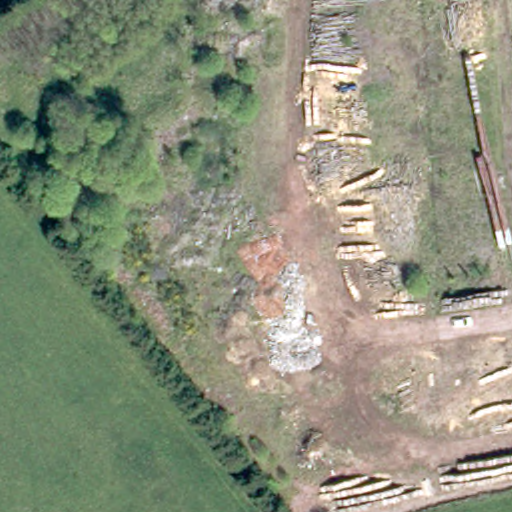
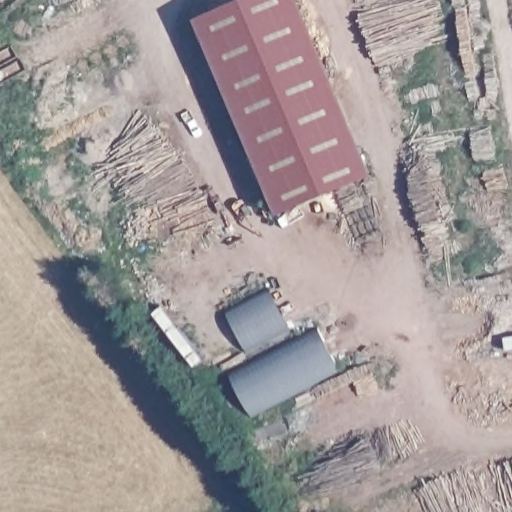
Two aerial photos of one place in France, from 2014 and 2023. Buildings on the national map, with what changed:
new [(197,23),(248,0),(300,0),(373,177),(278,217),(197,23)]
new [(272,292),(291,328),(249,352),(229,316),(272,292)]
new [(340,374),(253,418),(229,374),(317,328),(340,374)]

